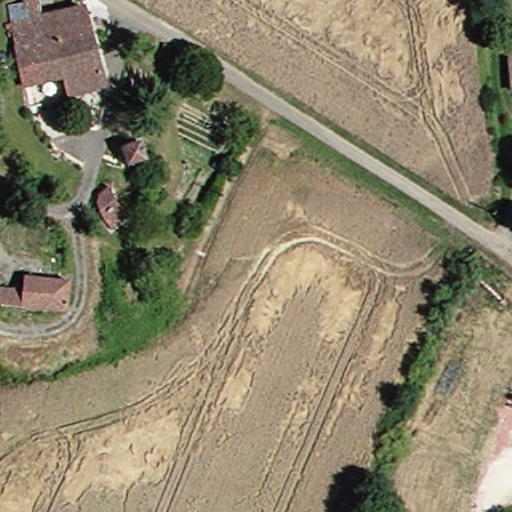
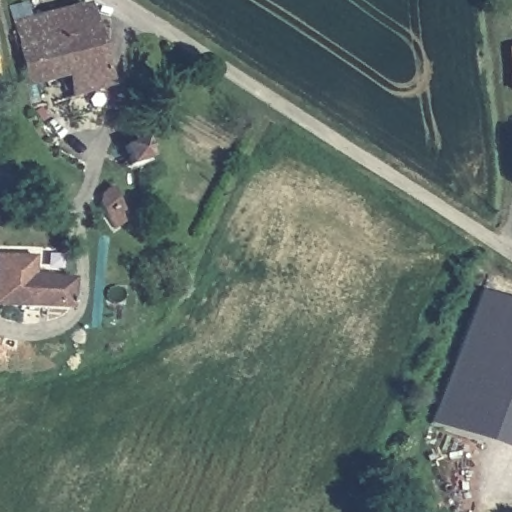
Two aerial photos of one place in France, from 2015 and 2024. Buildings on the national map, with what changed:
unchanged [(0,10),(15,6),(14,0),(30,0),(34,18),(84,6),(105,87),(29,107),(0,10)]
unchanged [(509,90),(508,70),(507,49),(512,48),(512,90),(509,90)]
unchanged [(129,172),(120,145),(139,136),(150,161),(129,172)]
unchanged [(111,229),(103,210),(96,196),(97,190),(108,187),(116,202),(126,222),(111,229)]
unchanged [(0,276),(63,278),(60,309),(0,306),(0,276)]
new [(505,453),(431,425),(479,294),(512,306),(512,435),(505,453)]

